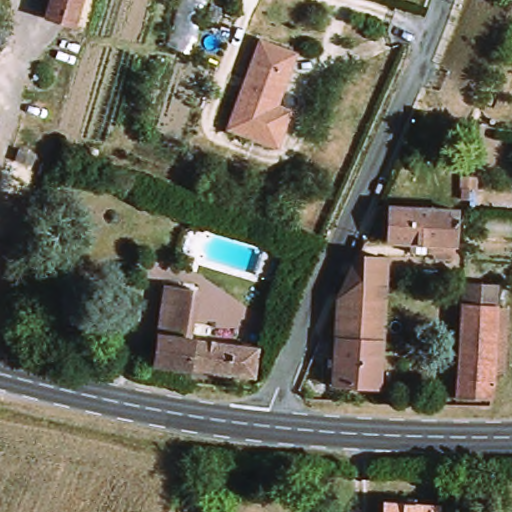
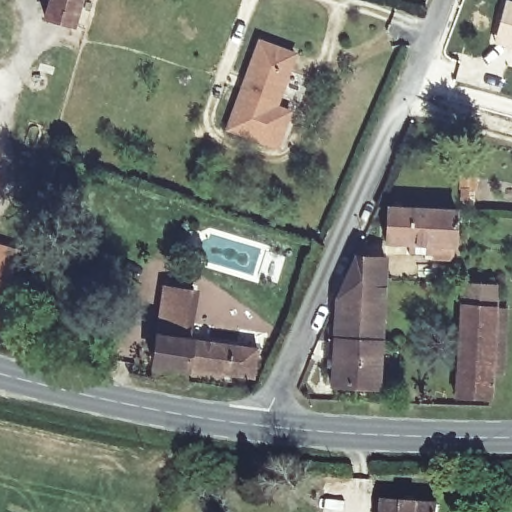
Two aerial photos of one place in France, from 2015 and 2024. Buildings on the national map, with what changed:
unchanged [(71,21),(43,15),(50,0),(80,0),(71,21)]
new [(506,0),(510,0),(512,1),(512,47),(494,42),(506,0)]
unchanged [(276,107),(290,112),(276,147),(228,133),(258,45),(291,55),(276,107)]
unchanged [(452,251),(448,256),(432,256),(429,250),(407,249),(407,239),(384,237),(385,209),(455,212),(452,251)]
unchanged [(0,336),(0,262),(15,267),(3,337),(0,336)]
unchanged [(384,307),(374,308),(337,302),(351,264),(389,268),(384,307)]
unchanged [(449,402),(454,314),(458,314),(460,288),(496,290),(493,297),(492,316),(504,316),(498,376),(486,376),(483,403),(449,402)]
unchanged [(248,355),(240,375),(152,355),(148,354),(165,290),(191,297),(181,336),(248,355)]
unchanged [(380,338),(326,332),(337,302),(374,308),(384,307),(380,338)]
unchanged [(374,388),(321,384),(326,332),(380,338),(374,388)]

